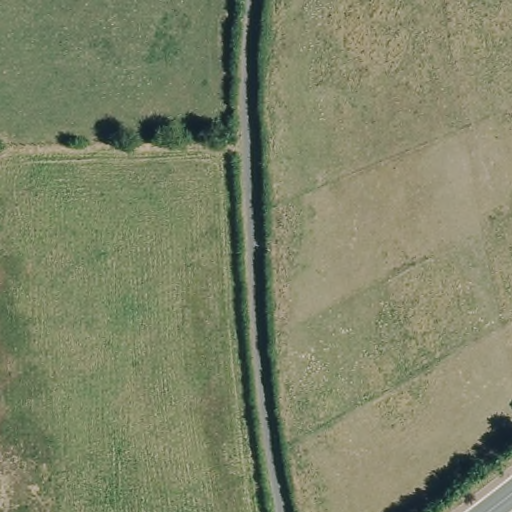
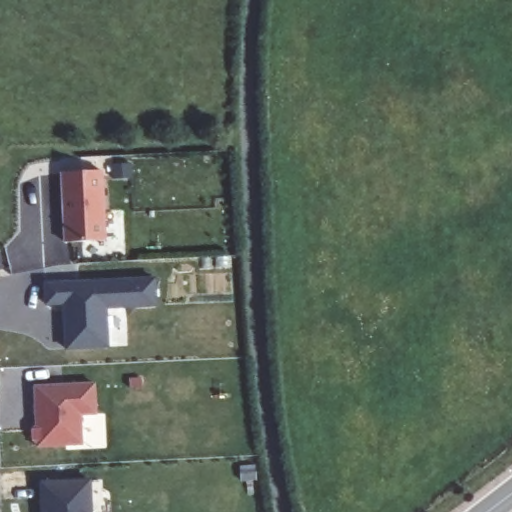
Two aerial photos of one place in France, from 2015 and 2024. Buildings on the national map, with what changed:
new [(107,170),(110,240),(72,241),(69,172),(107,170)]
new [(48,284),(157,280),(159,306),(109,308),(110,347),(70,349),(68,324),(70,324),(70,310),(67,310),(67,304),(49,305),(48,284)]
new [(43,445),(42,440),(39,438),(37,428),(42,425),(40,385),(100,381),(101,412),(85,413),(86,443),(43,445)]
new [(92,480),(94,512),(37,512),(35,484),(92,480)]

